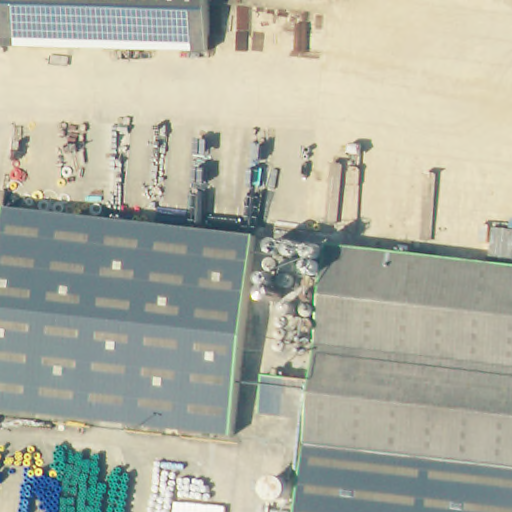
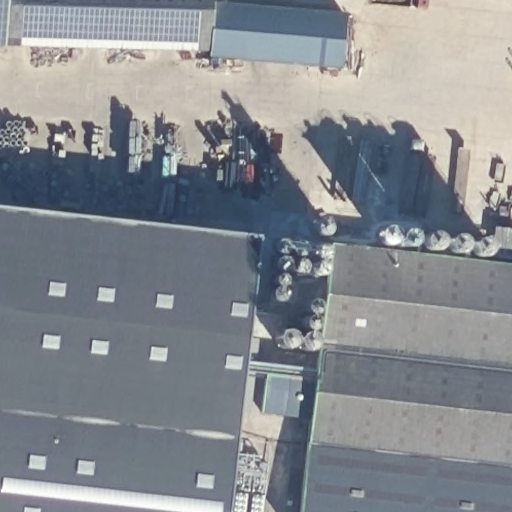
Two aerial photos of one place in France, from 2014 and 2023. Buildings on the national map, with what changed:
unchanged [(0,42),(0,0),(1,0),(0,42)]
unchanged [(0,42),(1,0),(207,0),(206,45),(0,42)]
new [(207,2),(345,14),(340,69),(207,55),(206,45),(207,2)]
new [(0,266),(0,206),(6,207),(0,266)]
unchanged [(257,237),(235,436),(0,408),(0,266),(6,207),(257,237)]
unchanged [(270,370),(314,375),(329,240),(512,259),(512,512),(299,512),(308,413),(266,410),(260,410),(265,370),(270,370)]
new [(235,436),(225,512),(0,512),(0,408),(235,436)]

